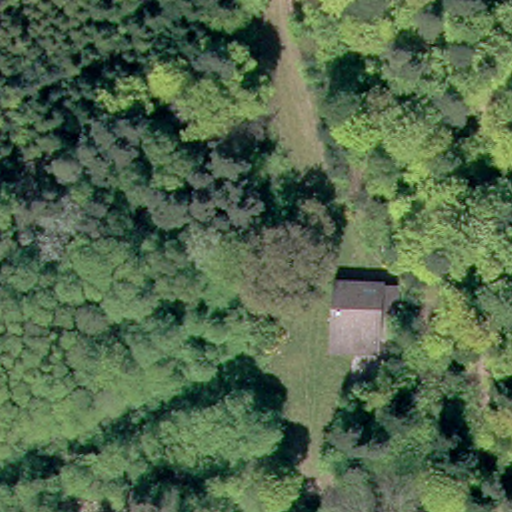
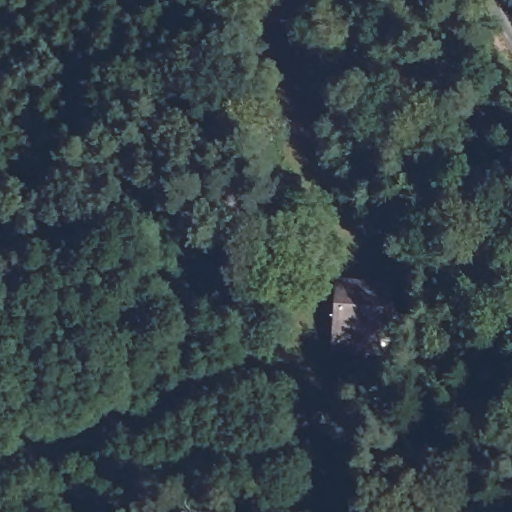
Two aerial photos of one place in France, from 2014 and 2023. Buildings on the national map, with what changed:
unchanged [(298,0),(333,0),(334,6),(303,18),(298,0)]
unchanged [(385,340),(339,348),(328,283),(369,275),(370,284),(385,280),(392,302),(376,305),(385,340)]

